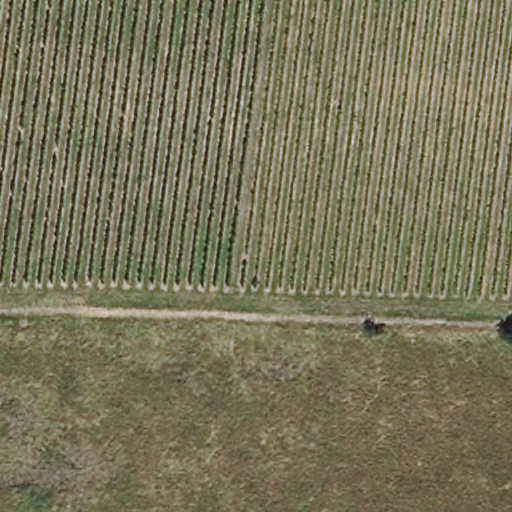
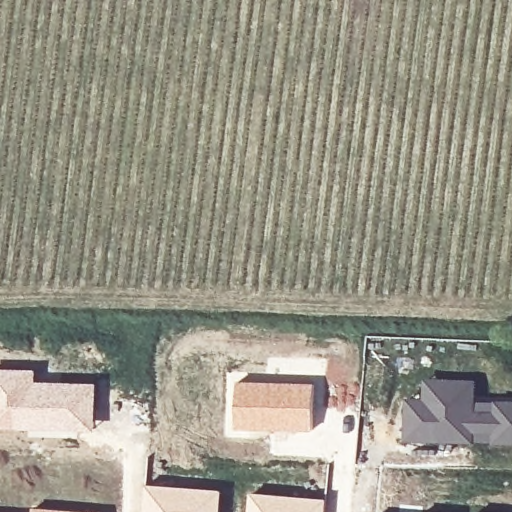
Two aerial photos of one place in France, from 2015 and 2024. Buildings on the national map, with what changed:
new [(38,380),(98,382),(95,431),(0,428),(0,368),(37,368),(38,380)]
new [(406,399),(423,398),(424,379),(477,378),(477,399),(512,400),(512,443),(488,442),(453,443),(405,440),(406,399)]
new [(237,381),(315,382),(314,430),(235,429),(237,381)]
new [(146,483),(224,489),(221,512),(144,512),(146,483)]
new [(250,491),(328,497),(327,512),(249,512),(250,491)]
new [(33,506),(105,512),(33,512),(33,506)]
new [(421,511),(427,512),(421,512),(421,511)]
new [(476,511),(483,512),(475,512),(476,511)]

